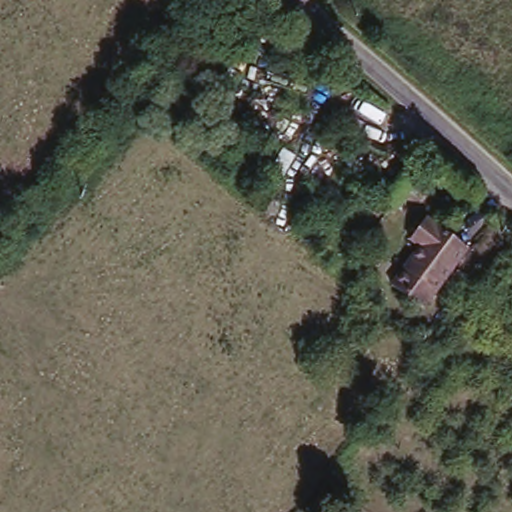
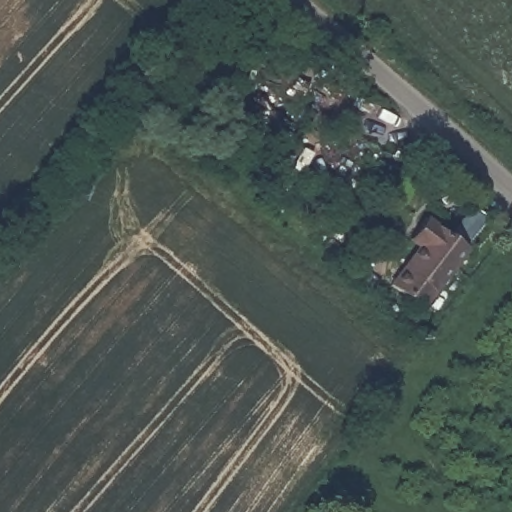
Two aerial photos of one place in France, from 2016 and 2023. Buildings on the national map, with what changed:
unchanged [(415,250),(404,241),(422,217),(465,249),(420,313),(387,288),(415,250)]

